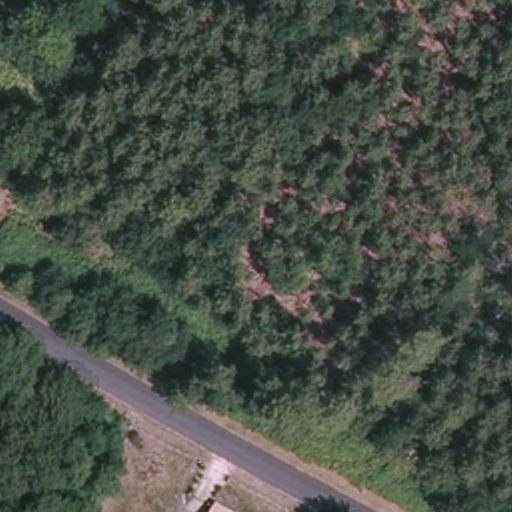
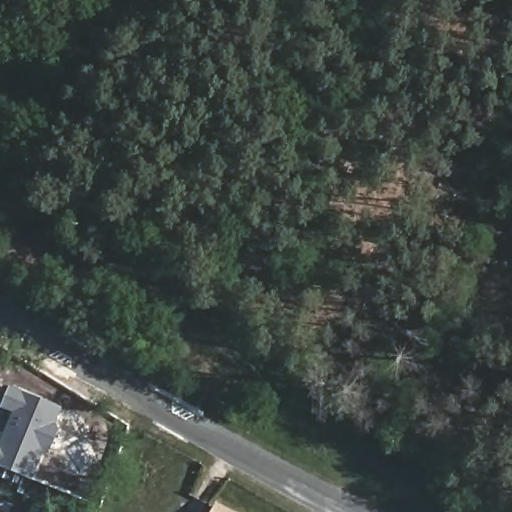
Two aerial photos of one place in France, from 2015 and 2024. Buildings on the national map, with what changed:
new [(56,422),(53,441),(44,463),(40,462),(37,468),(41,470),(36,482),(0,468),(0,445),(1,446),(14,414),(0,409),(9,387),(28,396),(61,409),(56,422)]
new [(3,494),(0,502),(0,493),(3,494)]
unchanged [(216,504),(231,512),(211,512),(216,504)]

